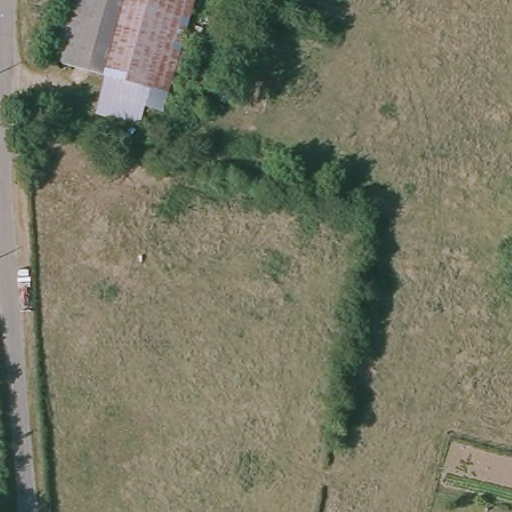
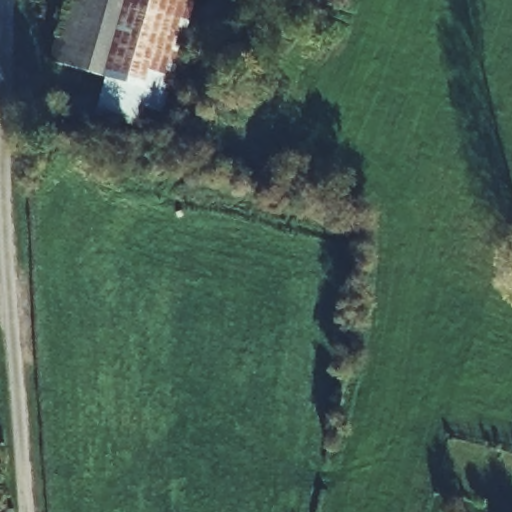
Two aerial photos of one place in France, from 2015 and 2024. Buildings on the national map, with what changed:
unchanged [(170,110),(114,95),(117,79),(54,64),(68,0),(170,0),(150,86),(175,91),(170,110)]
unchanged [(175,91),(150,86),(170,0),(195,0),(175,91)]

